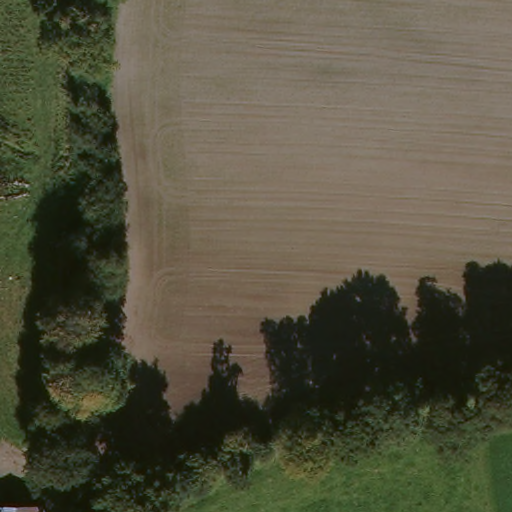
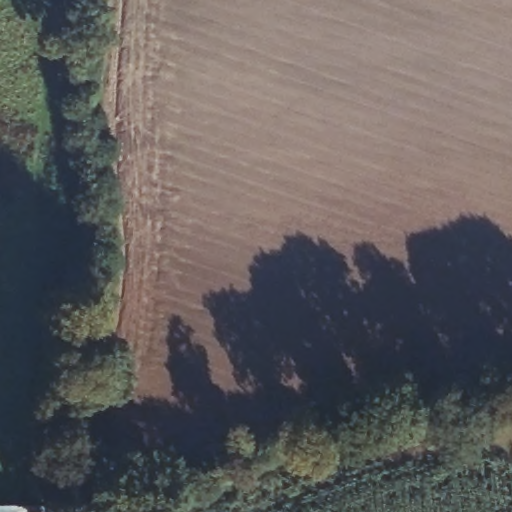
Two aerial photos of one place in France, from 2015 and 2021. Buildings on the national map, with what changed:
unchanged [(19,505),(19,512),(0,512),(0,507),(19,505)]

